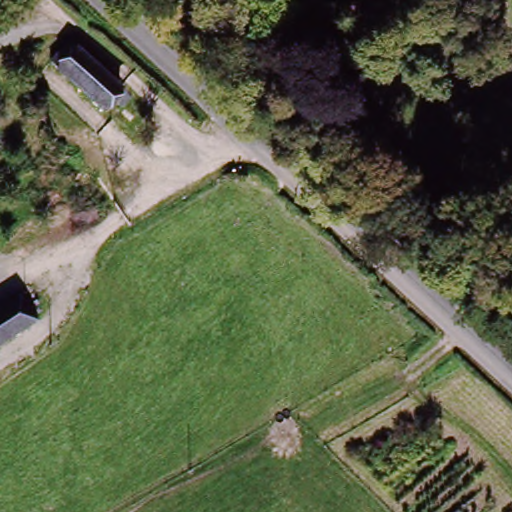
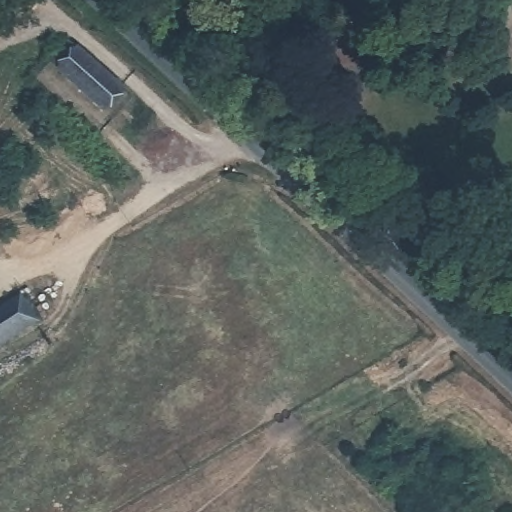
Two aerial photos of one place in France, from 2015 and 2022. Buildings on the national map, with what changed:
unchanged [(82,56),(125,97),(107,115),(66,73),(82,56)]
unchanged [(0,313),(26,299),(38,322),(0,344),(0,313)]

